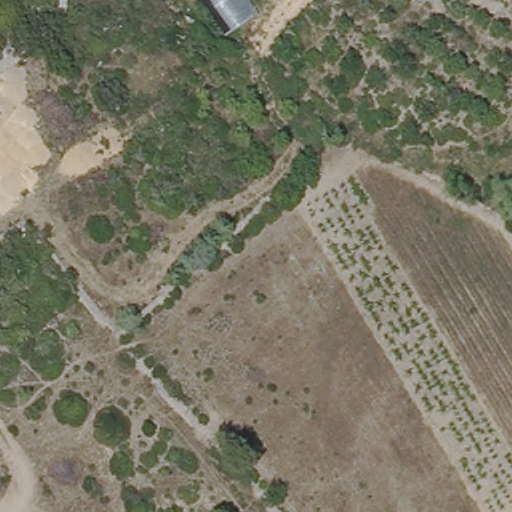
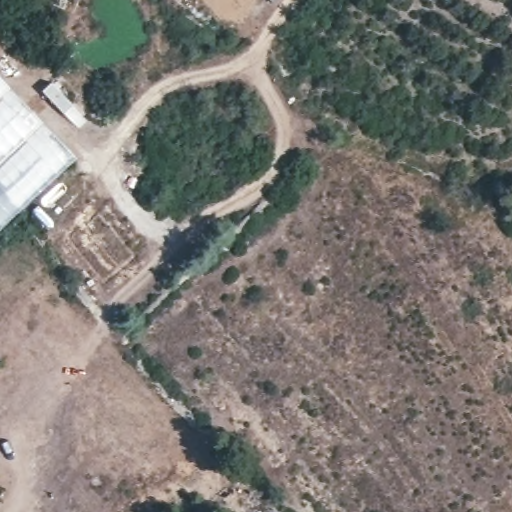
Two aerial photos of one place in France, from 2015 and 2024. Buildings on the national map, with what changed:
new [(269,6),(236,36),(203,0),(263,0),(269,6)]
new [(0,227),(0,78),(74,157),(0,227)]

